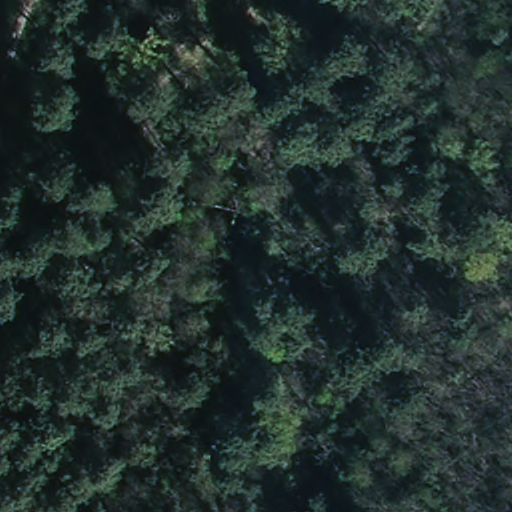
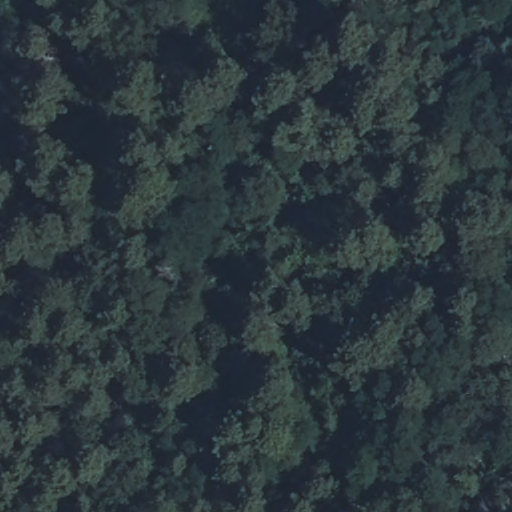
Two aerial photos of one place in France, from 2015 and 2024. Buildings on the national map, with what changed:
unchanged [(193,29),(200,0),(229,0),(217,36),(193,29)]

